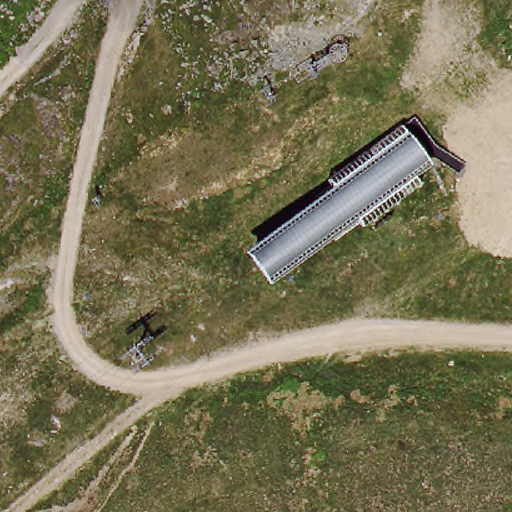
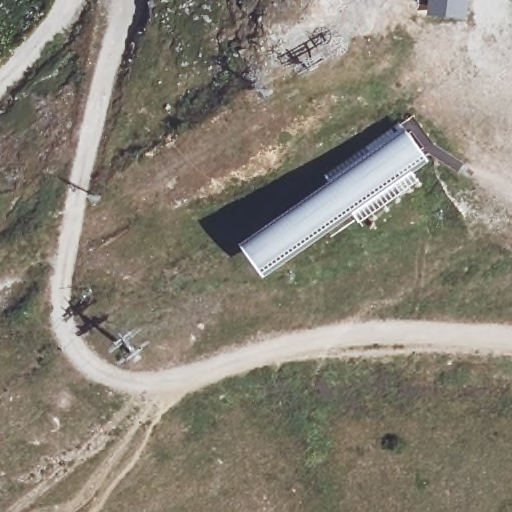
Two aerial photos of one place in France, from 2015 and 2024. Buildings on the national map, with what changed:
new [(469,24),(430,20),(432,0),(471,0),(469,24)]
unchanged [(407,131),(438,171),(422,182),(425,188),(407,203),(372,158),(407,131)]
unchanged [(315,201),(372,158),(407,203),(347,248),(341,237),(322,210),(315,201)]
unchanged [(322,210),(341,237),(299,270),(270,292),(252,263),(267,252),(322,210)]

